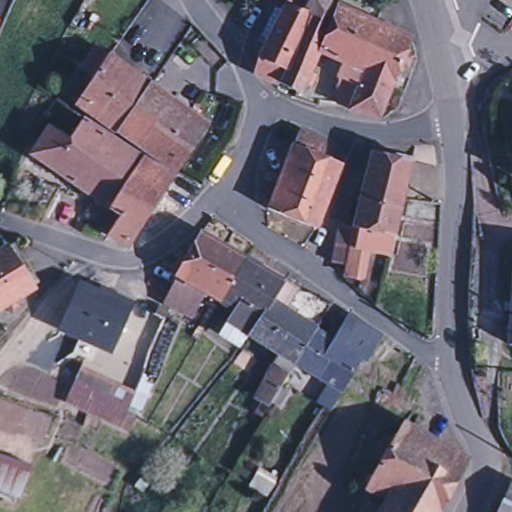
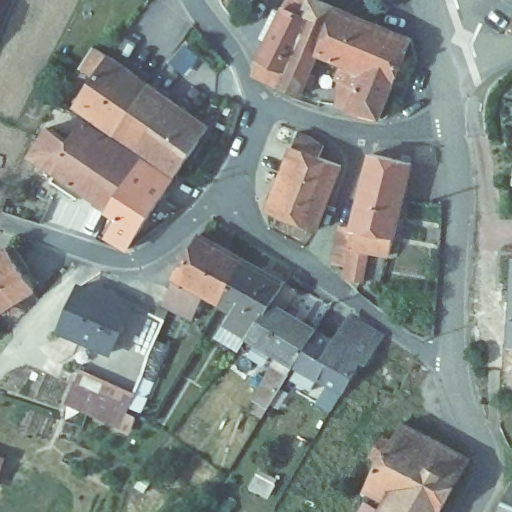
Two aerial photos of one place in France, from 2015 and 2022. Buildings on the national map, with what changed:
unchanged [(288,0),(326,0),(336,5),(320,45),(300,92),(279,84),(259,74),(257,66),(259,62),(260,59),(285,6),(288,0)]
unchanged [(362,79),(342,70),(348,56),(320,45),(336,5),(412,37),(411,38),(405,55),(380,116),(352,104),(362,79)]
unchanged [(75,104),(94,77),(81,68),(95,48),(108,56),(110,55),(140,77),(152,85),(169,97),(135,145),(117,133),(107,125),(75,104)]
unchanged [(135,145),(169,97),(188,110),(209,126),(177,172),(135,145)]
unchanged [(102,130),(70,180),(60,175),(25,150),(30,142),(36,146),(44,134),(50,125),(70,139),(84,118),(102,130)]
unchanged [(109,234),(120,215),(110,207),(97,199),(97,197),(70,180),(102,130),(142,157),(174,177),(167,190),(129,247),(109,234)]
unchanged [(269,209),(292,144),(319,154),(340,162),(317,226),(269,209)]
unchanged [(373,153),(412,163),(404,195),(365,185),(373,153)]
unchanged [(365,185),(404,195),(394,236),(390,255),(369,250),(362,280),(344,276),(346,266),(332,262),(340,224),(355,227),(365,185)]
unchanged [(299,362),(280,351),(250,333),(241,344),(219,330),(232,307),(221,300),(216,310),(206,303),(211,295),(205,291),(194,308),(169,295),(177,275),(201,234),(245,258),(285,280),(300,289),(287,311),(319,330),(299,362)]
unchanged [(0,246),(2,248),(9,244),(22,264),(33,281),(27,285),(29,287),(13,298),(19,306),(9,313),(2,305),(0,307),(0,246)]
unchanged [(80,339),(76,347),(67,343),(70,335),(55,328),(77,278),(112,295),(91,343),(80,339)]
unchanged [(112,295),(160,315),(165,318),(149,351),(132,343),(125,358),(91,343),(112,295)]
unchanged [(299,362),(319,330),(347,346),(361,321),(384,334),(374,352),(369,360),(362,356),(345,388),(328,378),(299,362)]
unchanged [(125,358),(132,343),(149,351),(129,417),(136,420),(131,431),(67,398),(91,343),(125,358)]
unchanged [(280,351),(299,362),(274,405),(254,393),(280,351)]
unchanged [(51,418),(22,499),(0,492),(0,401),(51,418)]
unchanged [(367,500),(384,510),(389,501),(367,488),(383,460),(372,454),(377,443),(384,435),(394,441),(405,421),(470,458),(440,510),(440,512),(360,512),(367,500)]
unchanged [(512,482),(512,512),(498,512),(511,481),(512,482)]

